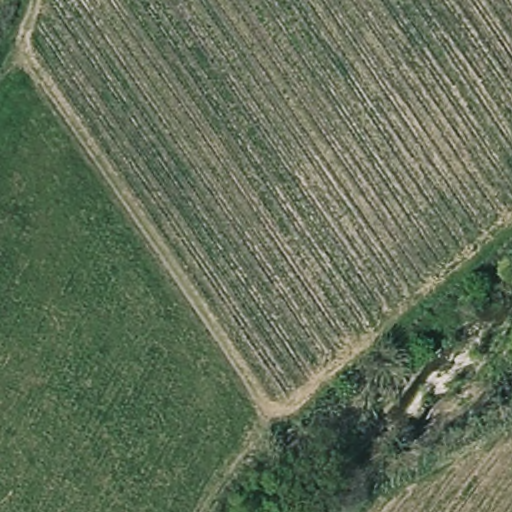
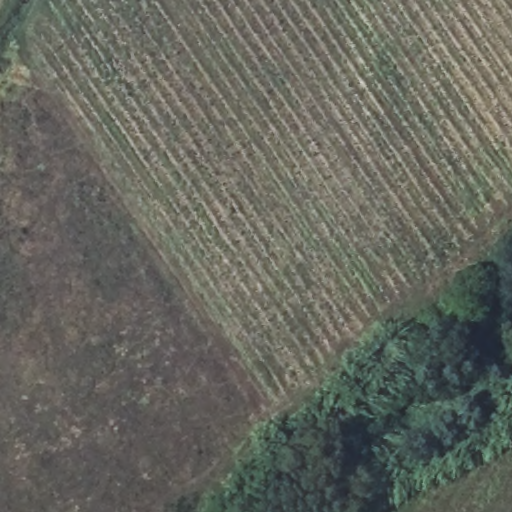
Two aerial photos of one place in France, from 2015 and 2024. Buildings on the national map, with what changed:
[]

